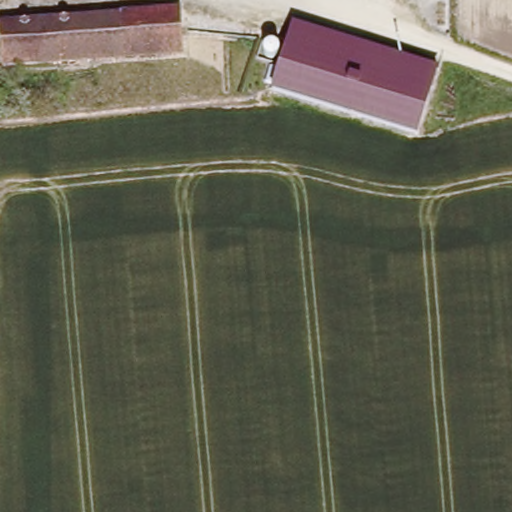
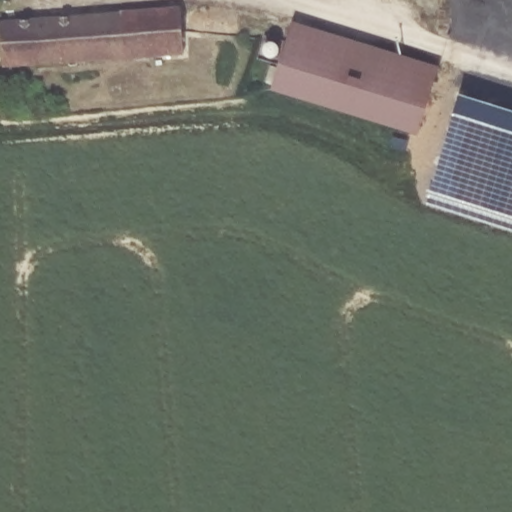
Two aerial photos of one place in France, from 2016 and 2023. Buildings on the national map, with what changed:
unchanged [(0,16),(182,2),(185,55),(0,67),(0,16)]
unchanged [(290,22),(433,67),(412,134),(271,93),(290,22)]
new [(452,94),(512,113),(512,222),(420,192),(452,94)]

